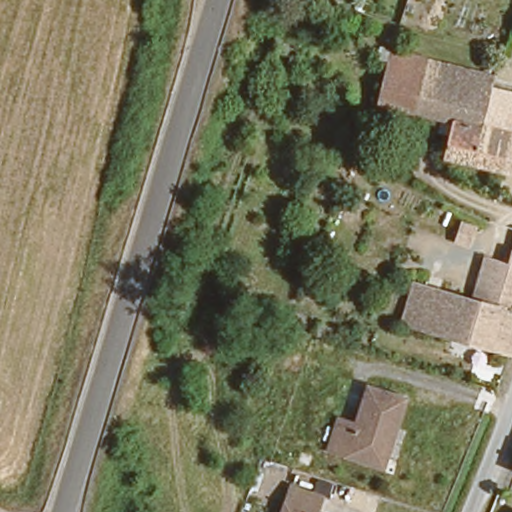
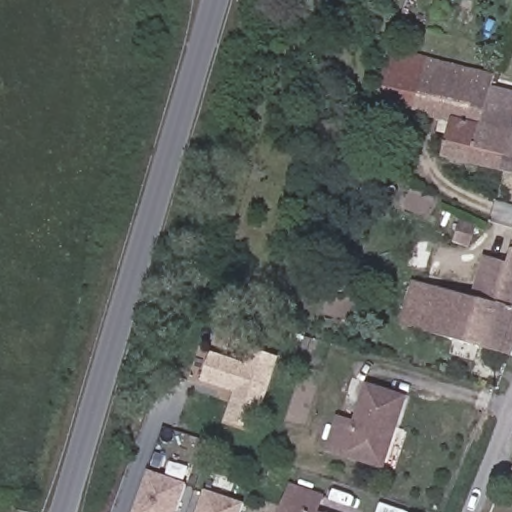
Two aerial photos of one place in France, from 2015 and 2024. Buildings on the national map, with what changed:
unchanged [(414,66),(402,116),(368,110),(378,58),(414,66)]
unchanged [(480,95),(473,130),(505,136),(497,173),(439,161),(447,126),(402,116),(414,66),(457,76),(483,83),(480,95)]
unchanged [(512,105),(505,136),(473,130),(480,95),(512,100),(512,105)]
unchanged [(512,175),(497,173),(505,136),(512,138),(512,175)]
unchanged [(352,146),(376,156),(369,173),(347,163),(352,146)]
unchanged [(474,295),(486,256),(510,262),(512,253),(512,352),(402,323),(389,319),(396,295),(402,274),(416,278),(474,295)]
new [(210,355),(244,366),(249,350),(276,359),(252,430),(225,422),(235,392),(201,382),(210,355)]
unchanged [(402,397),(380,466),(326,448),(337,416),(354,422),(367,383),(402,397)]
new [(147,472),(185,484),(176,512),(133,512),(147,472)]
unchanged [(320,497),(314,512),(279,512),(288,485),(320,497)]
new [(204,491),(243,505),(241,512),(197,512),(204,491)]

